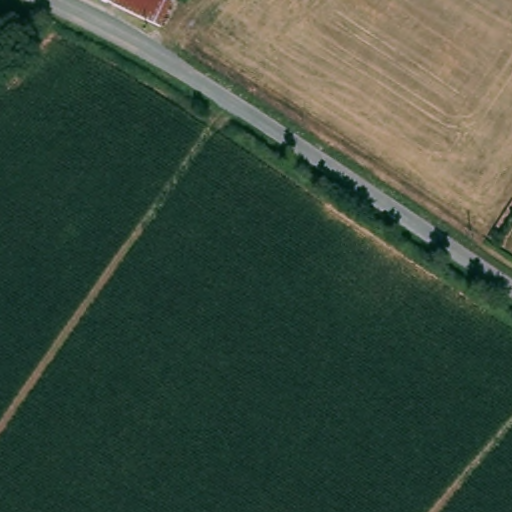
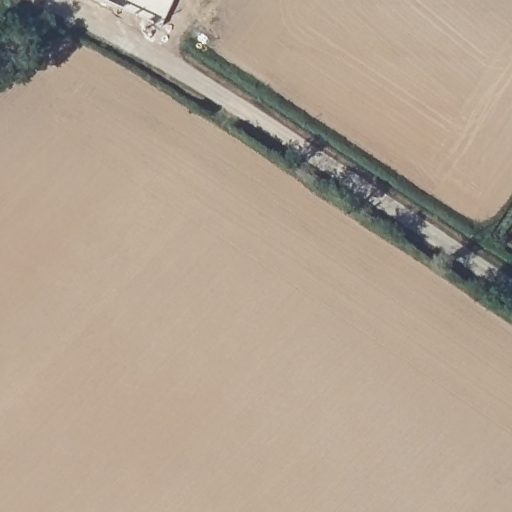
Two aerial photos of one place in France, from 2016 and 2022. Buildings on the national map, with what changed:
unchanged [(104,5),(94,0),(107,0),(104,5)]
unchanged [(160,23),(150,18),(144,24),(104,5),(107,0),(173,0),(160,23)]

